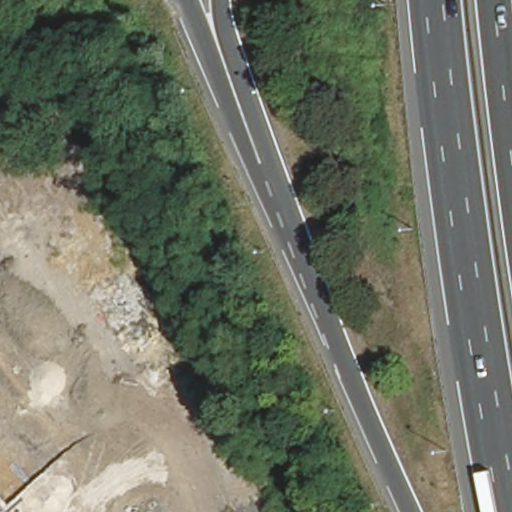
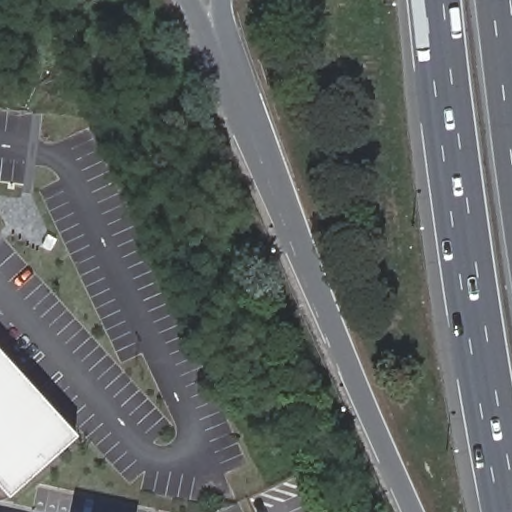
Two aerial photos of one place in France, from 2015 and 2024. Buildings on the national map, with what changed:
new [(0,499),(0,353),(75,436),(9,497),(0,499)]

